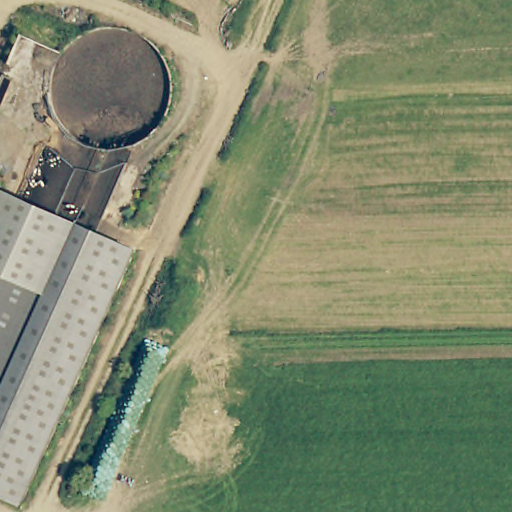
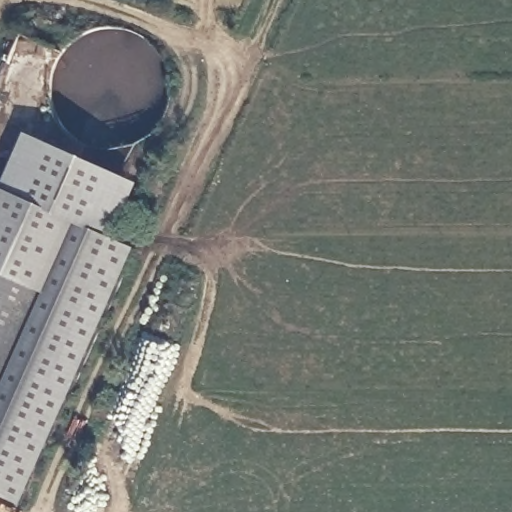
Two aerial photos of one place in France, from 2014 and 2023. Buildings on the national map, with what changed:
new [(2,185),(26,133),(141,184),(114,244),(1,193),(0,196),(0,184),(2,185)]
unchanged [(1,193),(132,252),(20,504),(0,495),(0,196),(1,193)]

